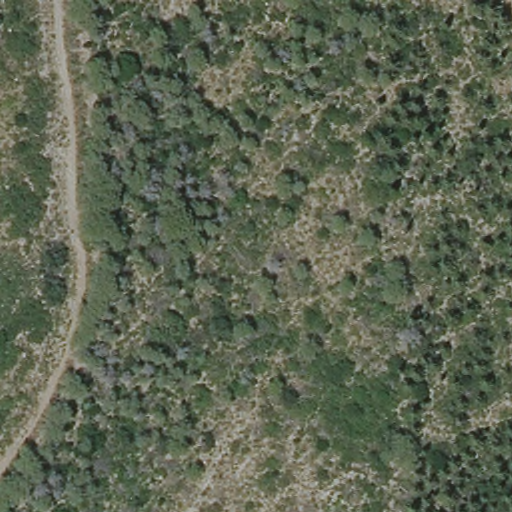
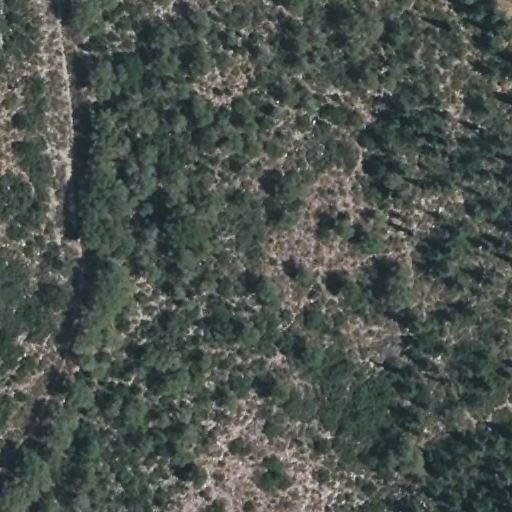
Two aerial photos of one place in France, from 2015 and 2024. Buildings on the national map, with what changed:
[]

